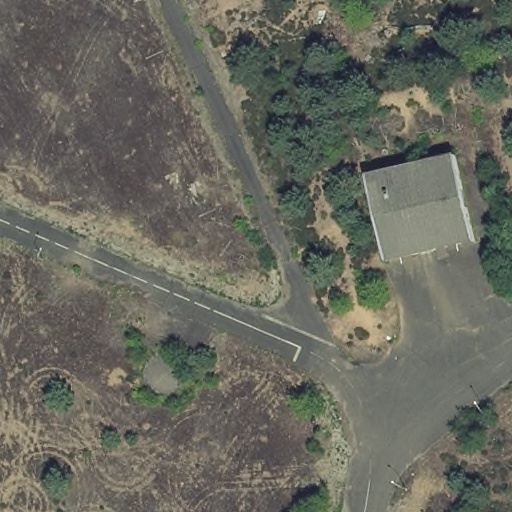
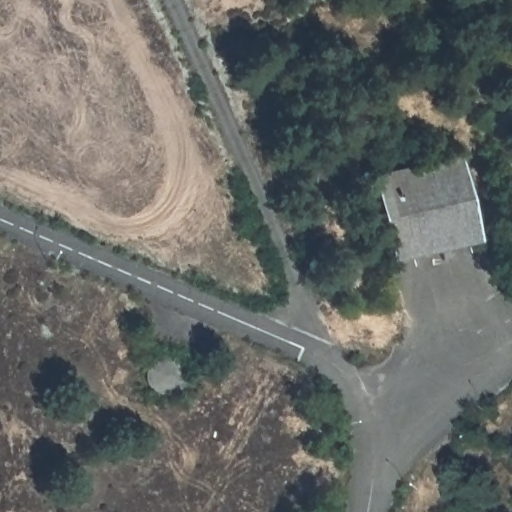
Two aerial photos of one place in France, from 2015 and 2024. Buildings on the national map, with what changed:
unchanged [(394,265),(376,177),(458,156),(479,247),(394,265)]

